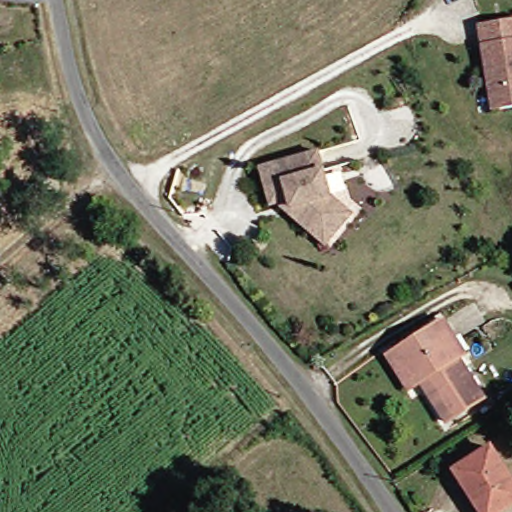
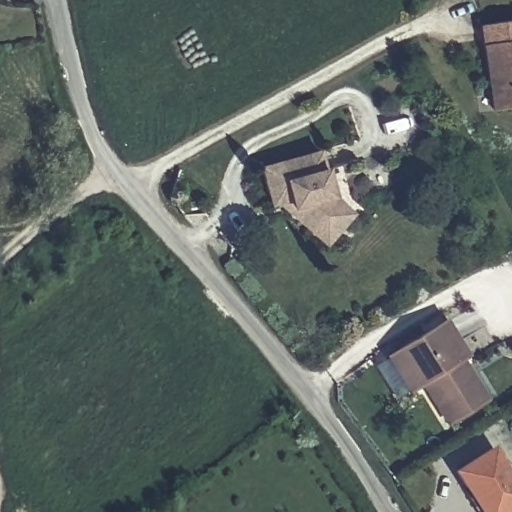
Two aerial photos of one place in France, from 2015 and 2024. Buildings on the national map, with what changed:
unchanged [(488,121),(477,35),(512,29),(512,117),(488,121)]
unchanged [(272,214),(266,216),(256,177),(314,162),(327,206),(348,225),(325,251),(321,256),(272,214)]
unchanged [(447,423),(422,383),(410,391),(387,356),(395,352),(444,321),(455,338),(467,356),(460,360),(485,400),(447,423)]
unchanged [(483,512),(457,471),(492,448),(512,479),(512,506),(502,512),(483,512)]

